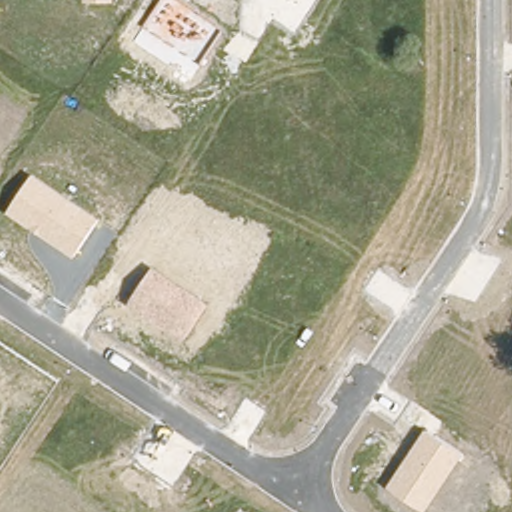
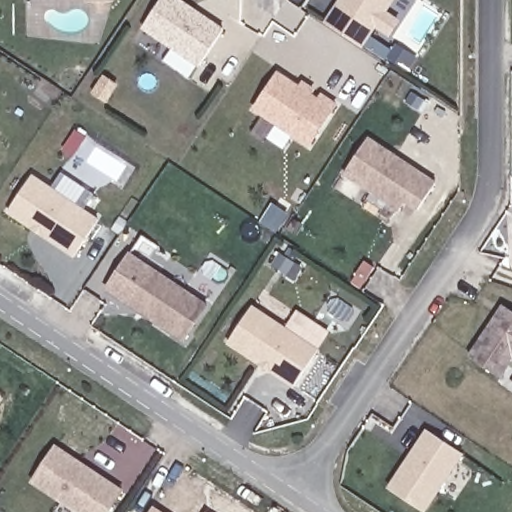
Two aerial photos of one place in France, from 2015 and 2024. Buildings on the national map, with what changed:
unchanged [(114,1),(85,2),(85,0),(114,0),(114,1)]
unchanged [(200,63),(144,27),(161,0),(178,0),(222,30),(200,63)]
new [(375,26),(335,3),(337,0),(395,0),(375,26)]
new [(309,146),(250,108),(278,70),(297,83),(300,78),(337,103),(309,146)]
new [(414,211),(404,204),(400,210),(344,173),(368,136),(437,183),(414,211)]
unchanged [(74,257),(6,212),(33,175),(99,220),(74,257)]
new [(148,274),(128,305),(103,286),(129,251),(153,266),(148,274)]
unchanged [(208,305),(184,342),(128,305),(153,266),(208,305)]
new [(501,380),(466,355),(503,303),(512,309),(512,362),(501,380)]
new [(295,388),(227,342),(254,305),(319,349),(295,388)]
unchanged [(424,512),(387,488),(426,429),(464,454),(425,512),(424,512)]
new [(76,512),(30,482),(57,445),(123,489),(109,512),(76,512)]
new [(152,512),(154,510),(158,512),(152,512)]

